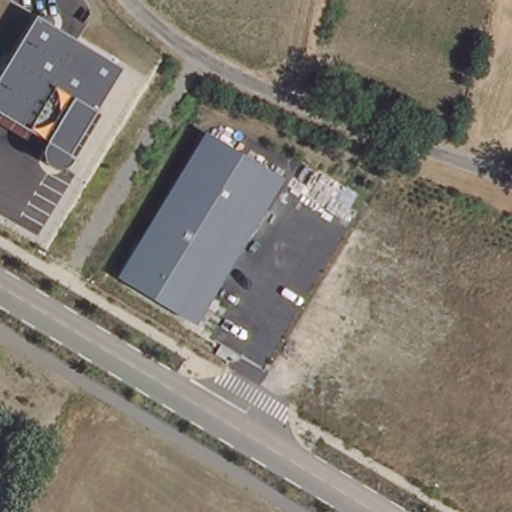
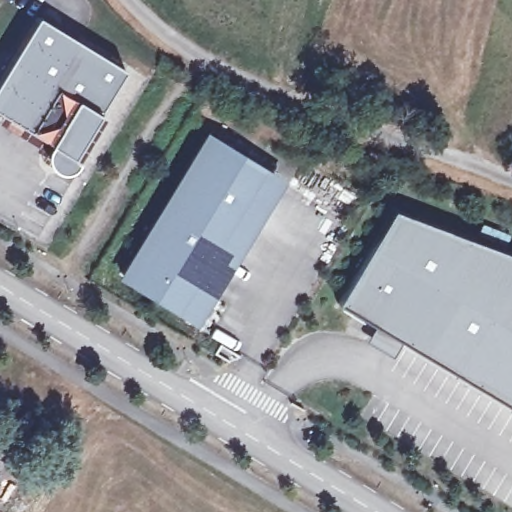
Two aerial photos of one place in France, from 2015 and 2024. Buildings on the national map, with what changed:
unchanged [(98,112),(71,162),(67,166),(63,167),(57,167),(51,165),(46,158),(45,152),(46,149),(50,142),(0,113),(0,81),(39,16),(125,69),(98,112)]
unchanged [(285,180),(198,324),(118,277),(206,132),(285,180)]
new [(370,324),(340,309),(394,211),(512,254),(512,408),(398,339),(392,353),(364,338),(370,324)]

